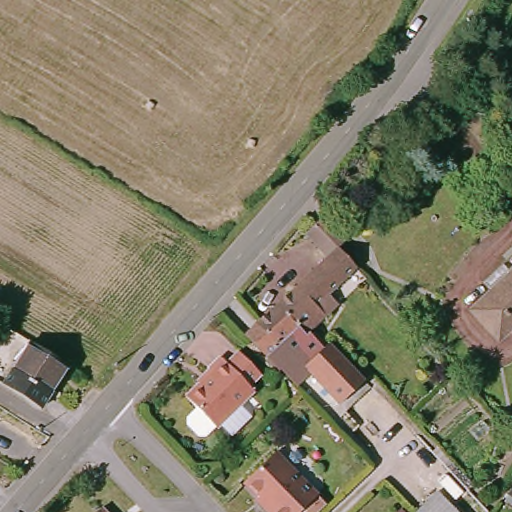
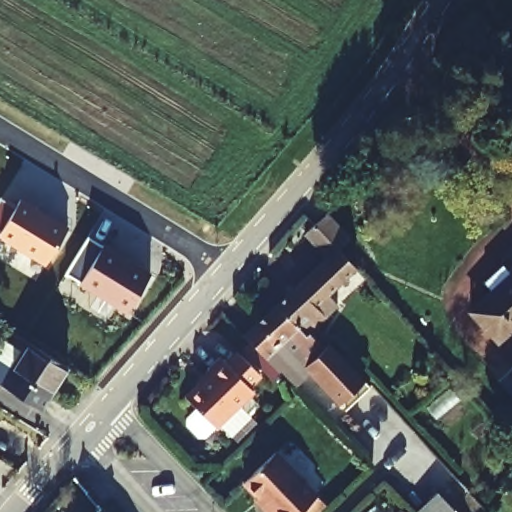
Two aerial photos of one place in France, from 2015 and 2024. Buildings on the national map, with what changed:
new [(21,199),(70,228),(45,266),(0,237),(0,230),(1,229),(0,228),(0,201),(2,197),(17,207),(21,199)]
unchanged [(345,232),(333,242),(352,263),(311,302),(320,311),(304,327),(283,346),(283,347),(255,317),(322,252),(300,228),(323,207),(345,232)]
new [(151,274),(127,313),(80,285),(65,275),(89,237),(151,274)]
unchanged [(493,338),(467,310),(512,268),(512,321),(493,338)]
unchanged [(283,347),(283,346),(304,327),(313,336),(316,332),(321,338),(324,336),(349,363),(331,380),(310,358),(301,367),(296,363),(285,375),(241,330),(255,317),(283,347)]
unchanged [(40,408),(2,385),(30,341),(45,350),(67,363),(40,408)]
unchanged [(185,396),(210,372),(207,370),(220,357),(228,365),(240,353),(261,374),(249,387),(253,392),(215,427),(185,396)]
unchanged [(313,496),(296,512),(264,512),(266,510),(240,482),(271,452),(313,496)]
unchanged [(437,491),(457,512),(416,512),(437,491)]
unchanged [(101,508),(105,512),(97,512),(101,508)]

